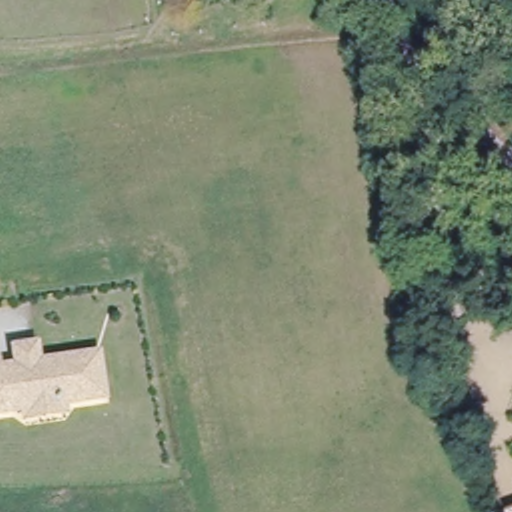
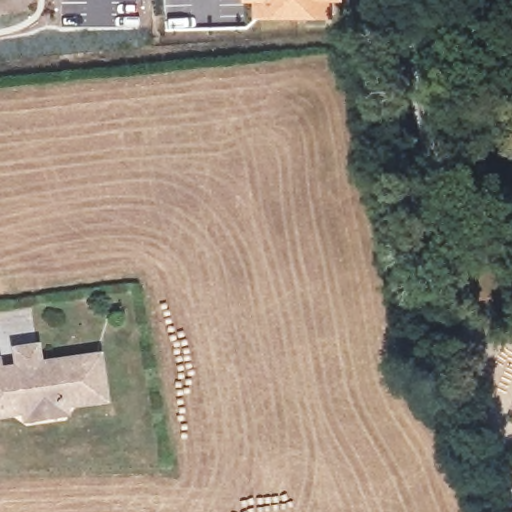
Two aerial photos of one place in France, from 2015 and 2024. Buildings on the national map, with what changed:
new [(346,2),(335,4),(336,19),(255,18),(255,4),(246,4),(246,0),(346,0),(346,2)]
unchanged [(0,406),(0,354),(16,352),(16,345),(36,342),(37,351),(37,360),(97,355),(102,397),(60,401),(61,410),(23,413),(22,405),(0,406)]
unchanged [(500,512),(499,507),(512,504),(512,512),(500,512)]

